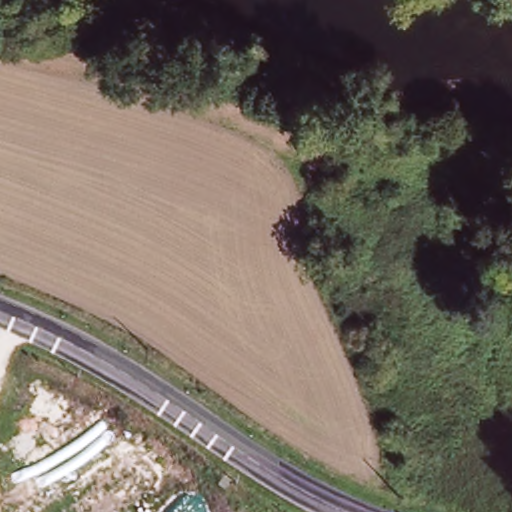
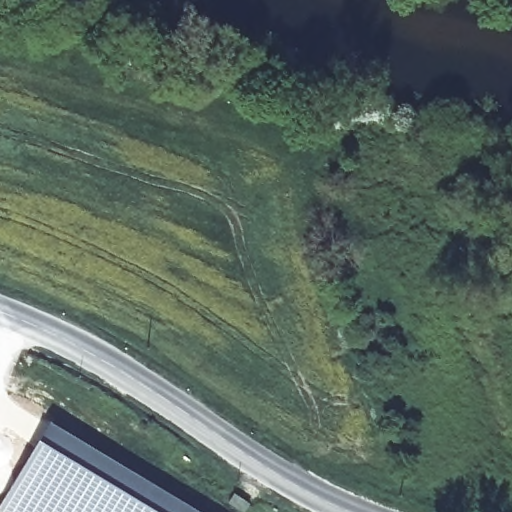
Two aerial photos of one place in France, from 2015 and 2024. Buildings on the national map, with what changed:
new [(50,423),(200,512),(1,512),(50,423)]

